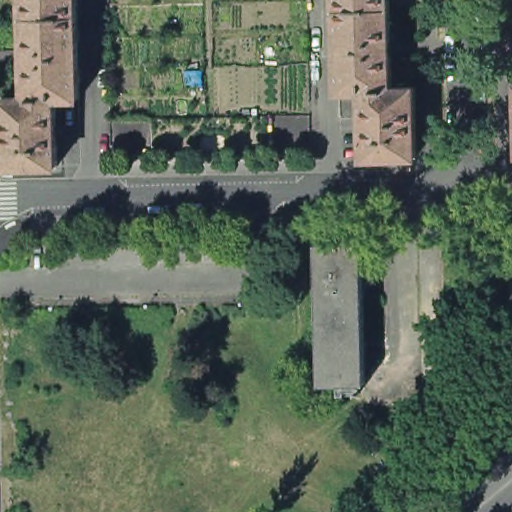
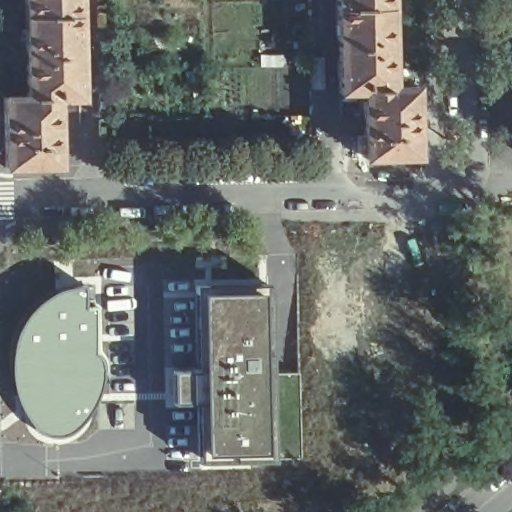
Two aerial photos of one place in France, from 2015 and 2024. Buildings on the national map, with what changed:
unchanged [(25,16),(25,0),(78,0),(78,15),(25,16)]
unchanged [(342,9),(342,0),(395,0),(395,8),(342,9)]
unchanged [(395,8),(396,87),(397,90),(368,91),(344,91),(342,9),(395,8)]
unchanged [(78,15),(80,98),(56,99),(27,100),(27,96),(25,16),(78,15)]
unchanged [(420,86),(421,156),(370,158),(368,91),(397,90),(396,87),(420,86)]
unchanged [(27,96),(27,100),(56,99),(58,166),(6,166),(4,96),(27,96)]
demolished [(355,237),(355,231),(358,231),(359,237),(367,237),(369,297),(369,298),(371,377),(326,379),(325,324),(322,238),(355,237)]
new [(278,457),(201,460),(200,400),(175,399),(176,366),(200,366),(198,280),(272,279),(278,457)]
new [(85,302),(96,303),(97,347),(100,350),(102,353),(105,359),(104,370),(103,381),(101,391),(96,403),(88,417),(80,426),(71,433),(63,436),(55,437),(46,435),(36,427),(27,414),(20,400),(15,386),(13,370),(13,357),(15,345),(18,333),(22,322),(28,313),(36,303),(43,296),(52,290),(62,286),(72,282),(84,281),(85,302)]

